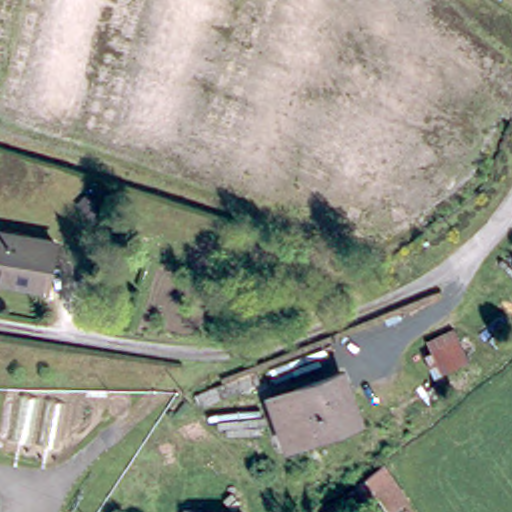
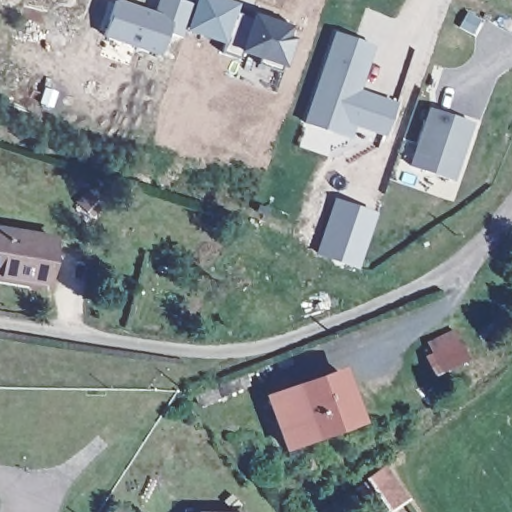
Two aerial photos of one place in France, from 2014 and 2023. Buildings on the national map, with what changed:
new [(144,7),(154,11),(158,0),(190,0),(193,1),(174,55),(103,31),(114,0),(123,0),(144,7)]
new [(253,18),(254,15),(289,27),(286,39),(291,40),(283,67),(281,70),(259,63),(260,60),(242,55),(241,57),(223,50),(235,12),(253,18)]
new [(332,131),(304,122),(335,31),(373,44),(358,90),(365,92),(396,102),(386,133),(354,122),(349,137),(332,131)]
new [(474,123),(455,181),(409,165),(429,108),(474,123)]
unchanged [(109,194),(100,207),(80,196),(88,185),(90,182),(104,190),(109,194)]
unchanged [(59,285),(0,274),(0,228),(66,239),(60,281),(59,285)]
unchanged [(435,373),(424,341),(454,327),(469,363),(435,373)]
unchanged [(271,394),(344,367),(361,415),(288,441),(271,394)]
unchanged [(389,501),(368,468),(385,456),(406,491),(389,501)]
unchanged [(130,512),(124,512),(125,510),(130,512)]

